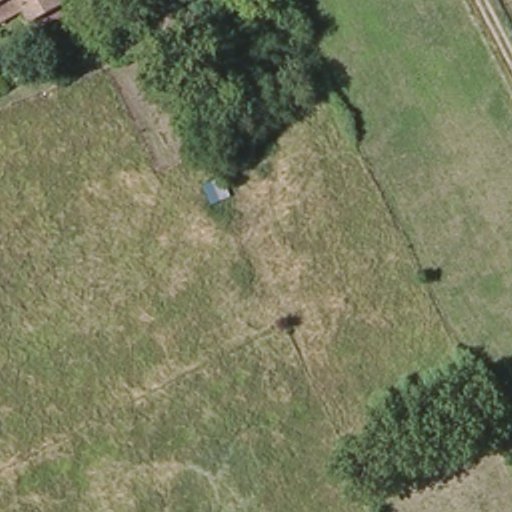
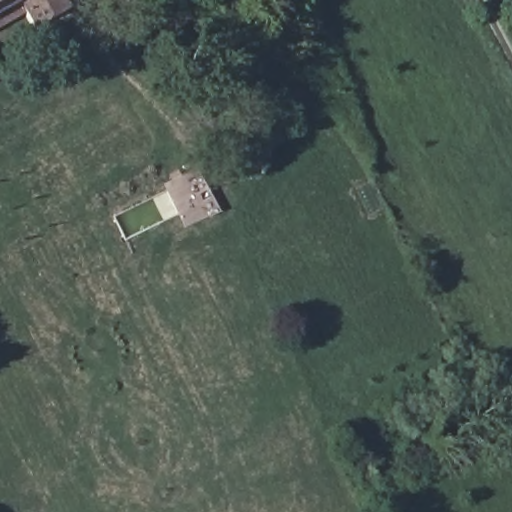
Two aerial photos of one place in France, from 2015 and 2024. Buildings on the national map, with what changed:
unchanged [(0,4),(0,0),(7,0),(0,4)]
unchanged [(44,20),(35,26),(19,0),(64,0),(68,6),(76,22),(53,36),(44,20)]

